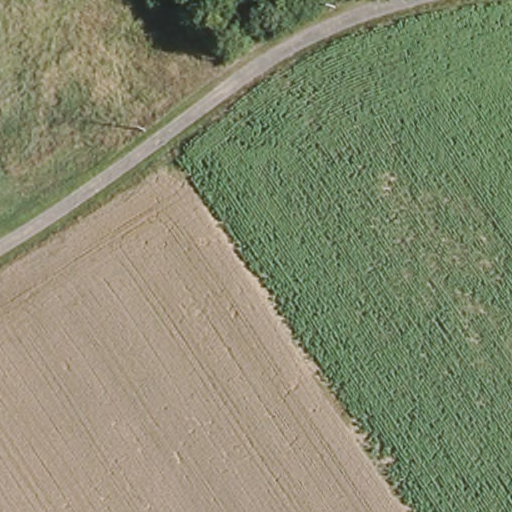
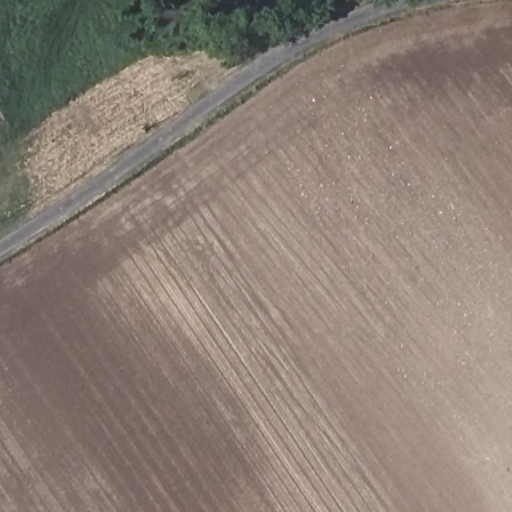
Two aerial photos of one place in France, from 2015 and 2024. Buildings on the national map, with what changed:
[]

